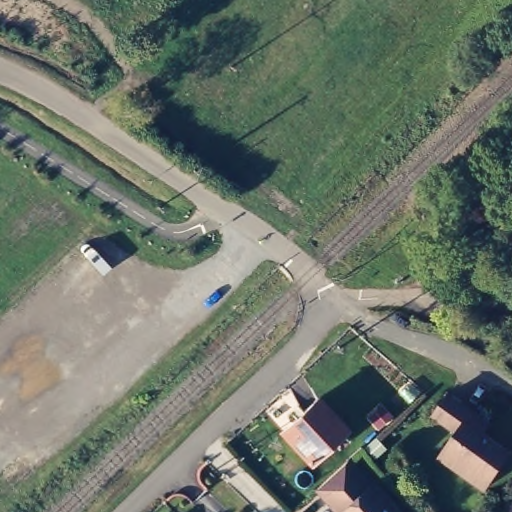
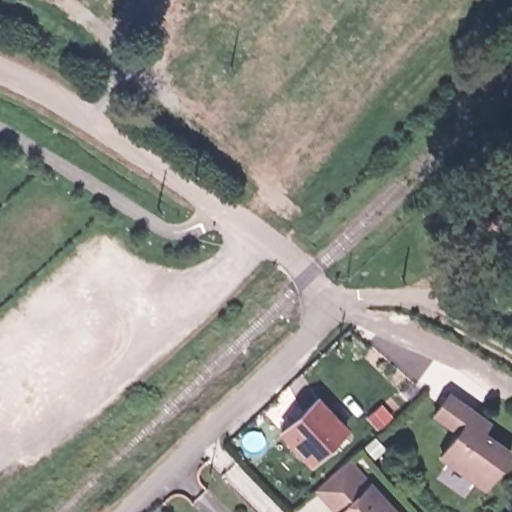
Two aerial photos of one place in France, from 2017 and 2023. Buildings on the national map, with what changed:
unchanged [(487,421),(482,429),(511,451),(484,489),(438,454),(455,431),(432,414),(448,391),(487,421)]
unchanged [(314,399),(339,427),(303,459),(278,430),(314,399)]
unchanged [(316,484),(348,454),(400,512),(341,512),(316,484)]

